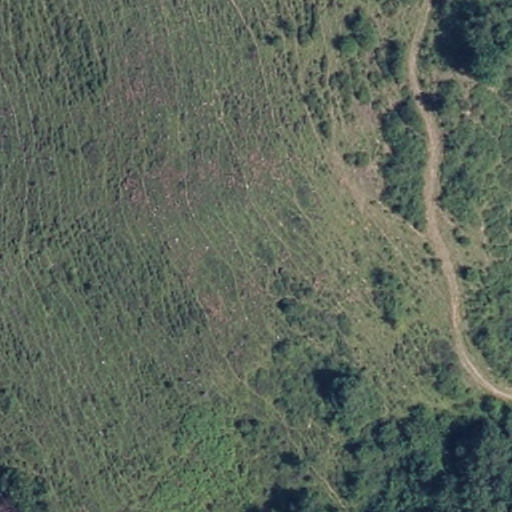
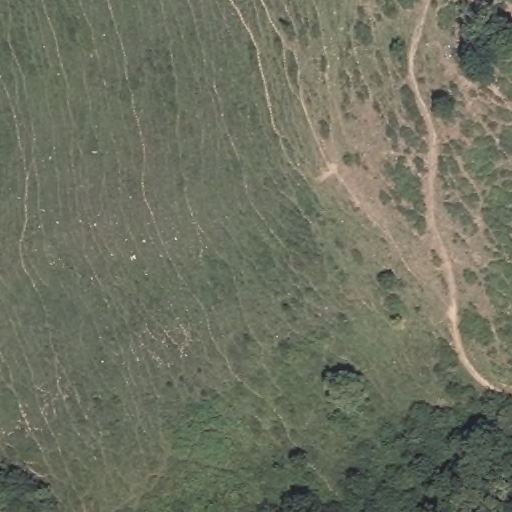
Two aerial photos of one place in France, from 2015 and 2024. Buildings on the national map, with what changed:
[]

